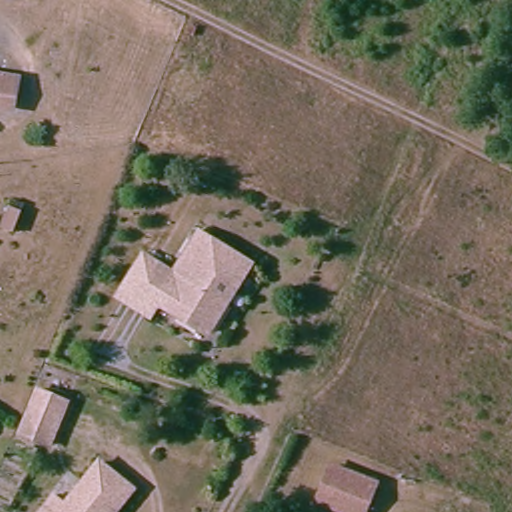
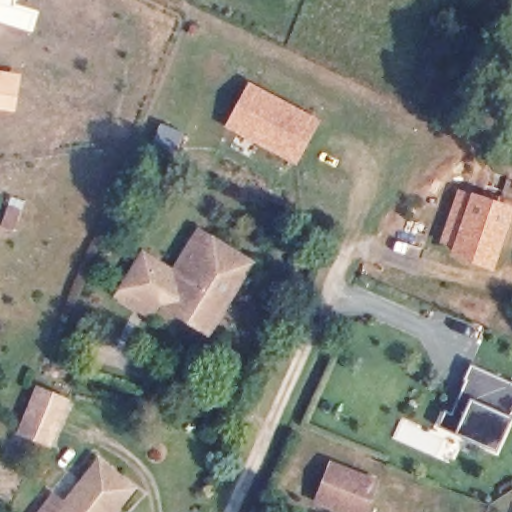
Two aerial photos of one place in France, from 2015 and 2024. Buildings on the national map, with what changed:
unchanged [(15,113),(0,110),(0,78),(21,82),(15,113)]
new [(320,120),(297,167),(224,127),(249,81),(320,120)]
new [(474,191),(512,206),(512,219),(493,272),(449,255),(463,216),(450,212),(459,188),(474,191)]
unchanged [(15,210),(28,215),(19,237),(6,232),(15,210)]
unchanged [(195,232),(245,263),(232,286),(182,254),(195,232)]
unchanged [(119,288),(140,255),(157,266),(169,274),(182,254),(232,286),(203,331),(154,300),(149,307),(145,313),(115,294),(119,288)]
new [(512,382),(512,416),(511,418),(497,451),(457,434),(438,426),(444,411),(453,415),(468,380),(465,378),(471,364),(512,382)]
unchanged [(33,444),(15,437),(34,393),(64,407),(51,438),(46,450),(33,444)]
unchanged [(348,510),(319,498),(335,462),(378,480),(368,503),(364,512),(352,512),(348,510)]
unchanged [(54,495),(66,505),(98,464),(134,494),(119,512),(41,512),(54,495)]

